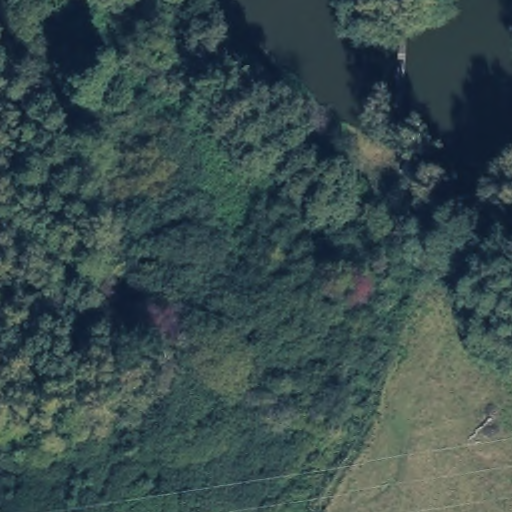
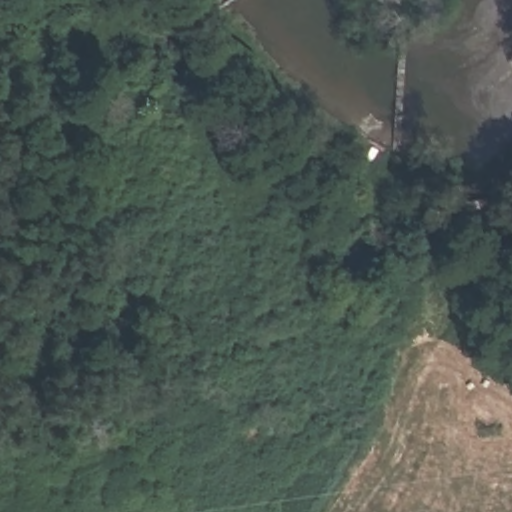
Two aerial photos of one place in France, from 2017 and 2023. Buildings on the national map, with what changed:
unchanged [(487,197),(492,226),(455,233),(448,203),(487,197)]

